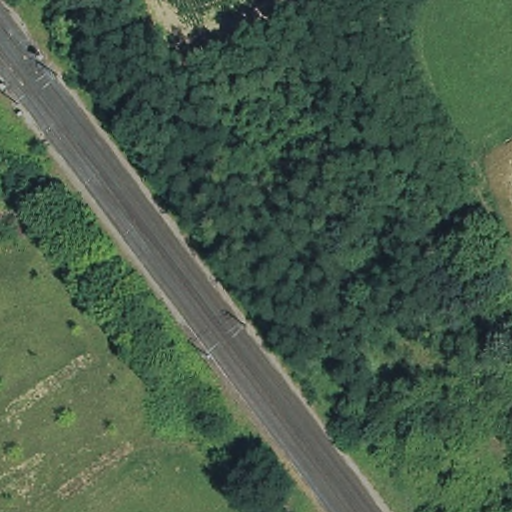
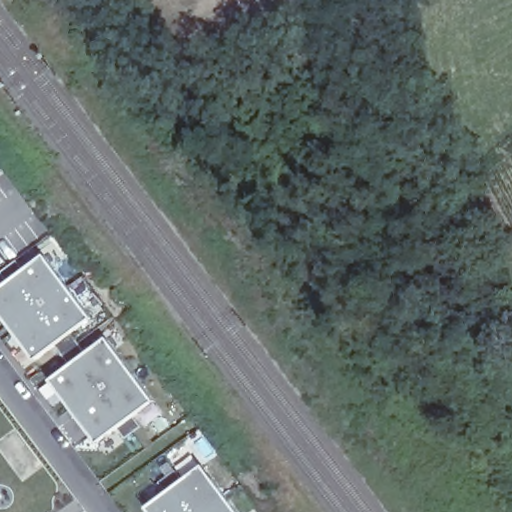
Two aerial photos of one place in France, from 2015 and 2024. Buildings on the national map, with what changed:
new [(87,318),(29,362),(0,322),(0,288),(39,256),(87,318)]
new [(146,402),(89,444),(45,386),(102,341),(146,402)]
new [(228,512),(143,512),(141,509),(194,466),(228,512)]

